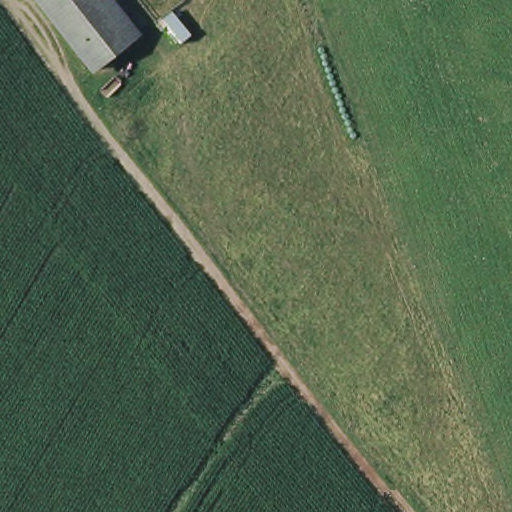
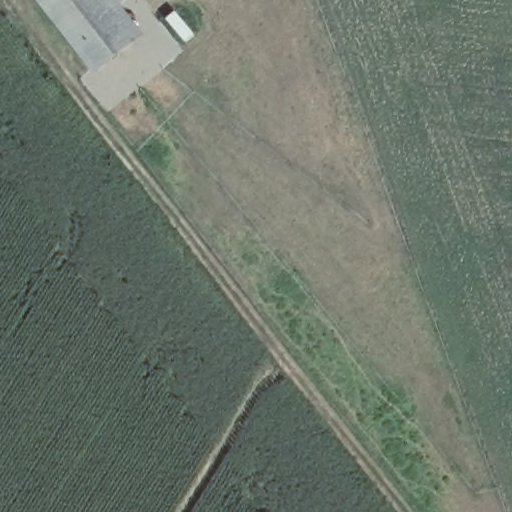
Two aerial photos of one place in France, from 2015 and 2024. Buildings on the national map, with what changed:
unchanged [(91,0),(114,0),(141,35),(126,45),(95,70),(42,0),(91,0)]

